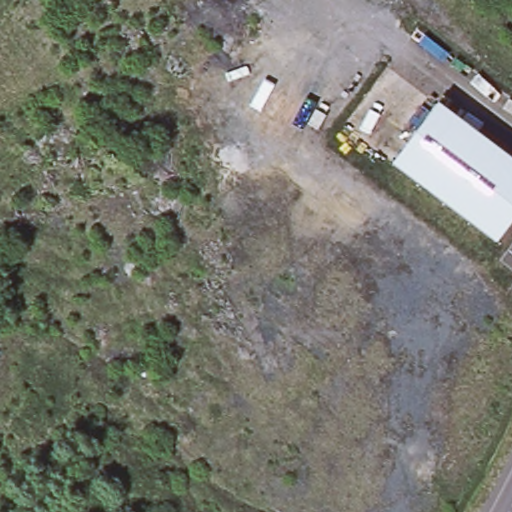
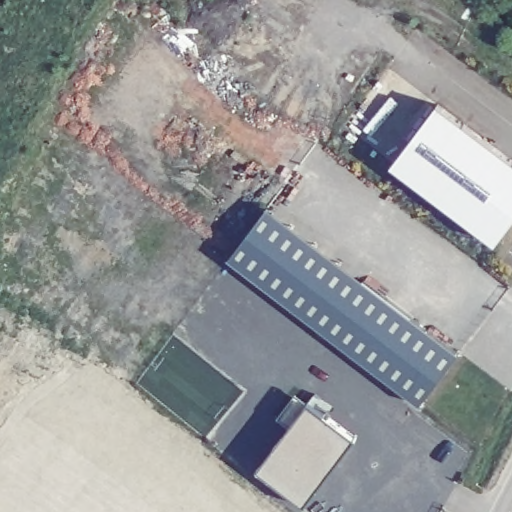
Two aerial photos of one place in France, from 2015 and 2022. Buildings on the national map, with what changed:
unchanged [(512,160),(512,220),(496,242),(393,165),(438,104),(512,160)]
new [(459,352),(419,404),(228,258),(266,207),(459,352)]

